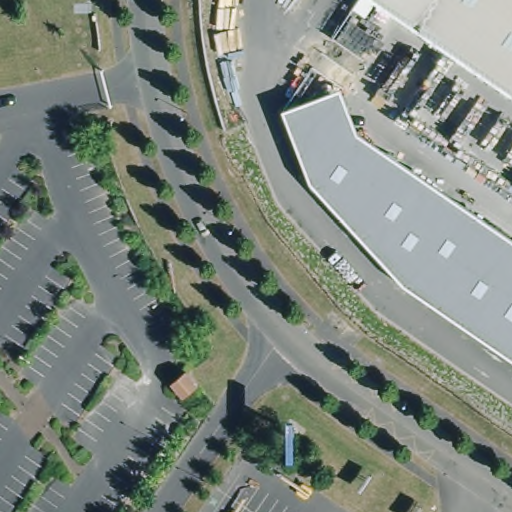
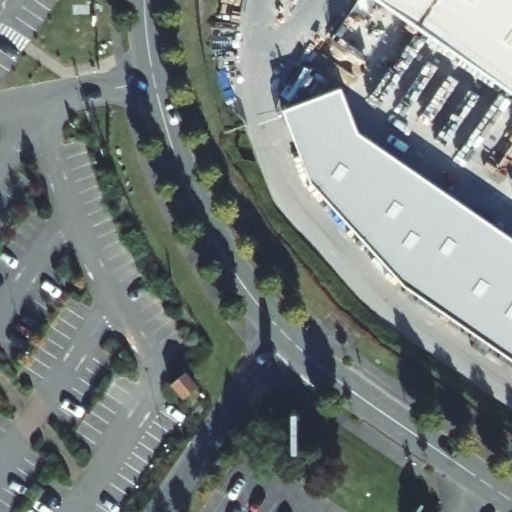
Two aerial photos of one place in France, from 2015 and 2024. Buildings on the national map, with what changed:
unchanged [(512,0),(512,96),(372,0),(512,0)]
unchanged [(309,183),(279,108),(336,87),(354,132),(512,240),(512,357),(402,283),(309,183)]
unchanged [(188,373),(201,387),(186,399),(174,385),(188,373)]

